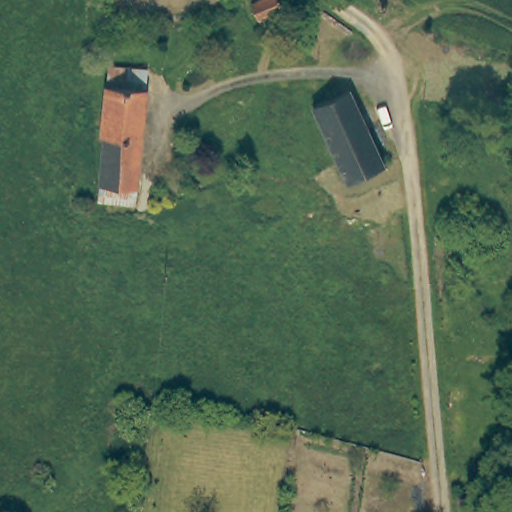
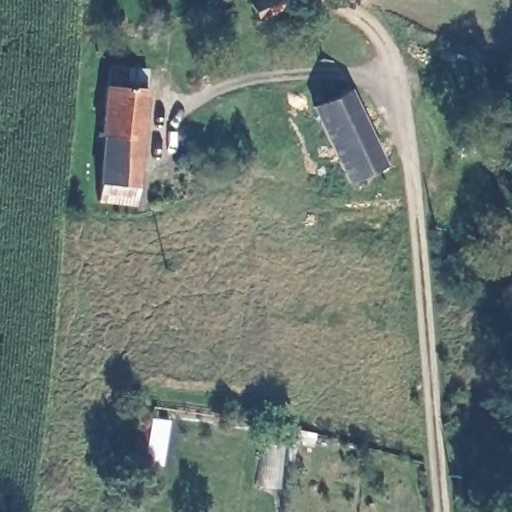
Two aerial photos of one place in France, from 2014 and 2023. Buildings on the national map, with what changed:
unchanged [(282,15),(260,19),(255,0),(291,0),(291,2),(290,6),(288,7),(281,8),(282,15)]
unchanged [(131,196),(95,190),(96,183),(104,126),(98,125),(104,80),(109,80),(110,62),(129,63),(131,64),(131,66),(148,67),(145,84),(134,169),(131,196)]
unchanged [(309,104),(332,90),(340,85),(382,155),(350,175),(309,104)]

